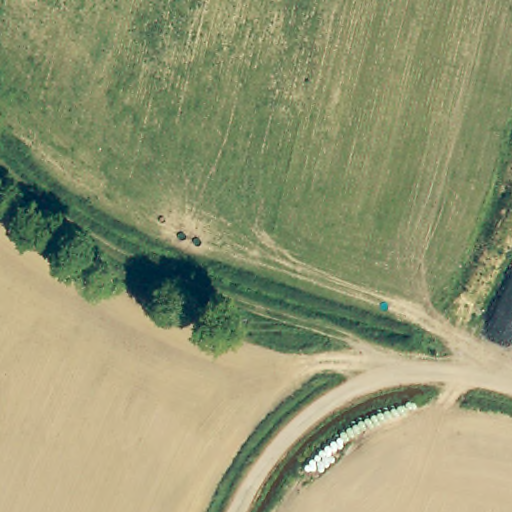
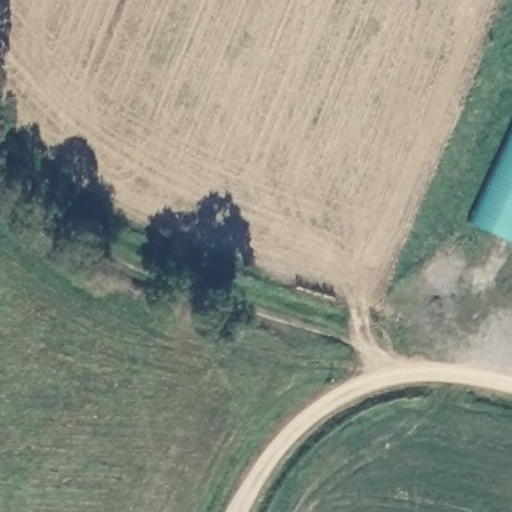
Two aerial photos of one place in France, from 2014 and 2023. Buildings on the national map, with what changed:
new [(470,223),(512,130),(512,242),(470,223)]

